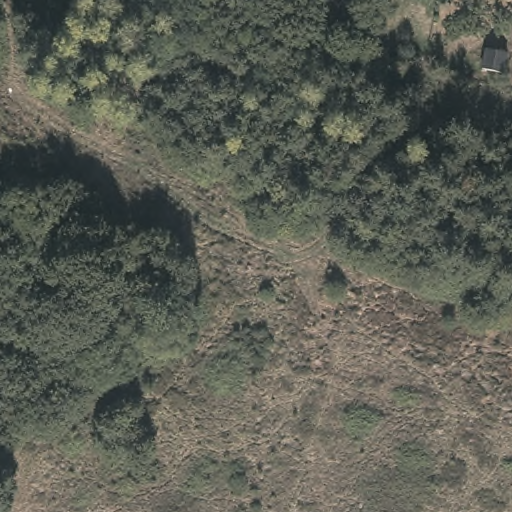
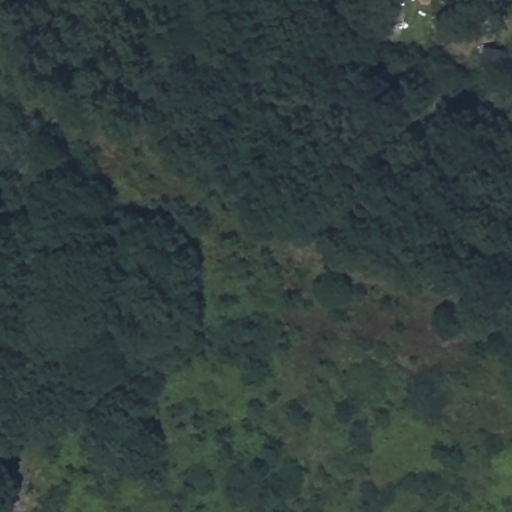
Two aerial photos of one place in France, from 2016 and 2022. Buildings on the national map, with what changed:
unchanged [(505,60),(501,79),(481,75),(485,55),(505,60)]

